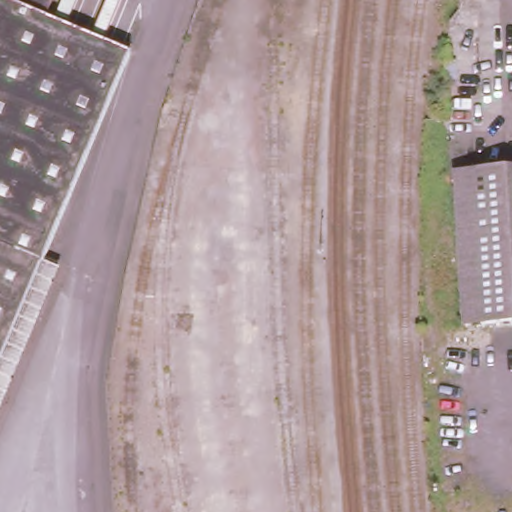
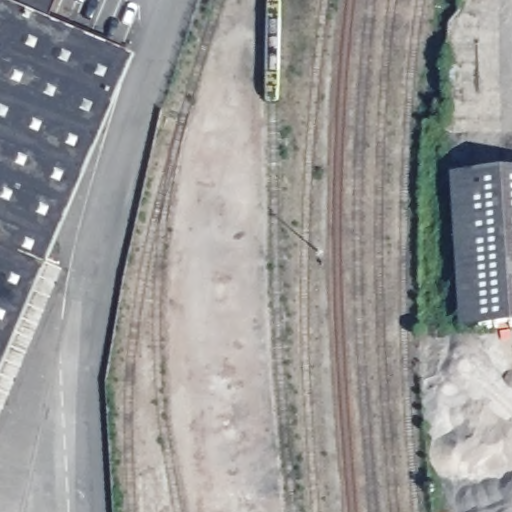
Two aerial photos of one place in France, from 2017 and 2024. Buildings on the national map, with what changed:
unchanged [(39,17),(130,56),(43,263),(0,366),(0,0),(46,0),(39,17)]
unchanged [(480,325),(470,164),(512,162),(512,323),(480,325)]
unchanged [(470,164),(480,325),(460,326),(452,165),(470,164)]
unchanged [(43,263),(60,270),(0,414),(0,366),(43,263)]

